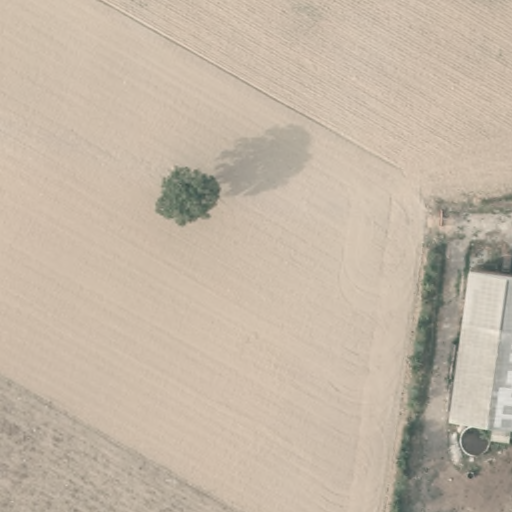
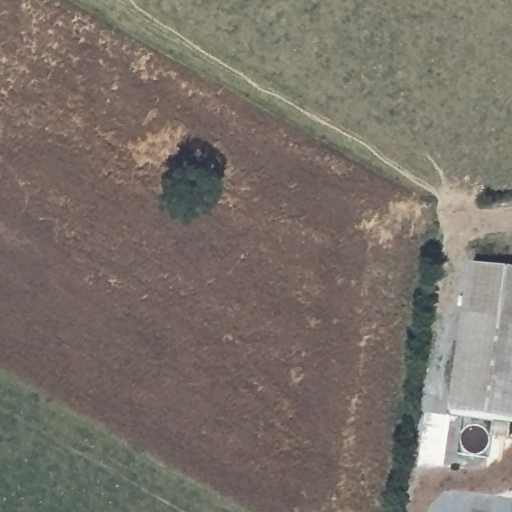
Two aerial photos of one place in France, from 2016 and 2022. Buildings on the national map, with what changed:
unchanged [(448,414),(467,266),(512,272),(512,422),(448,414)]

